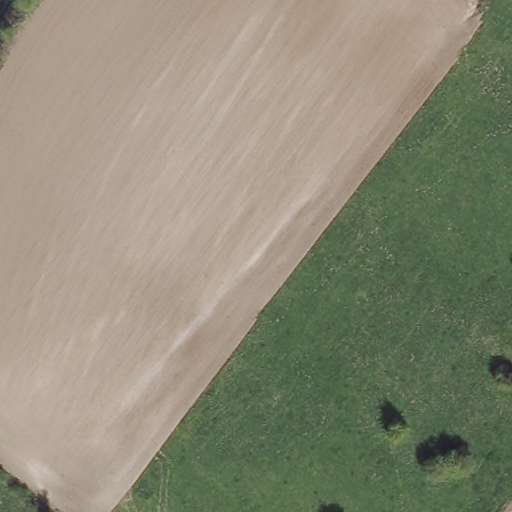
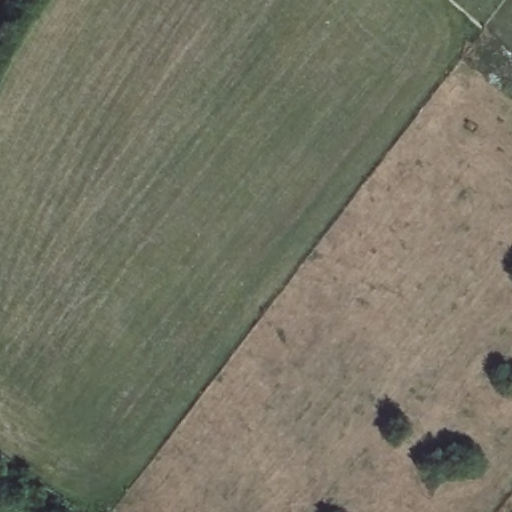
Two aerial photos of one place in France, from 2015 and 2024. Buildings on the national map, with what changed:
[]

